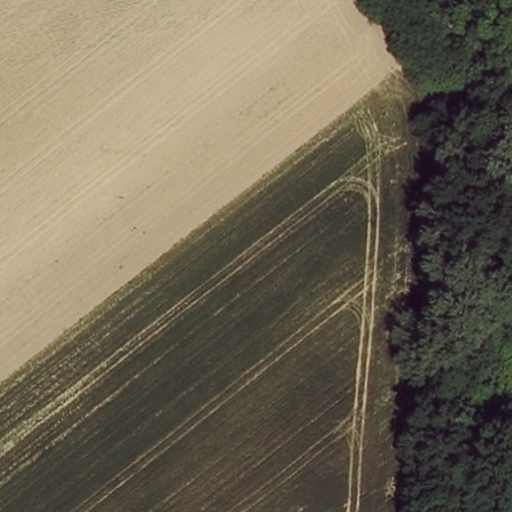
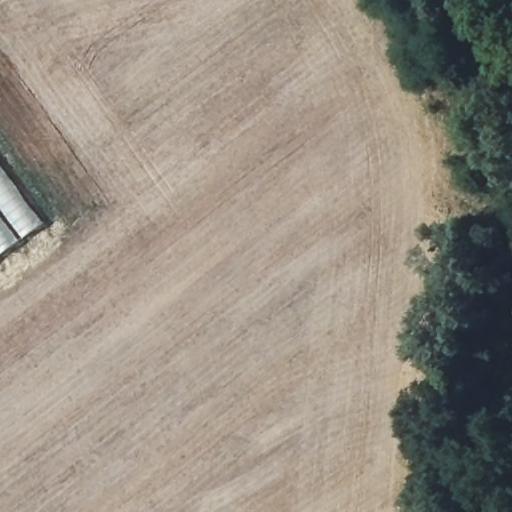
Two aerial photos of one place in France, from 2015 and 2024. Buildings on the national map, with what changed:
new [(0,258),(0,165),(46,224),(0,258)]

